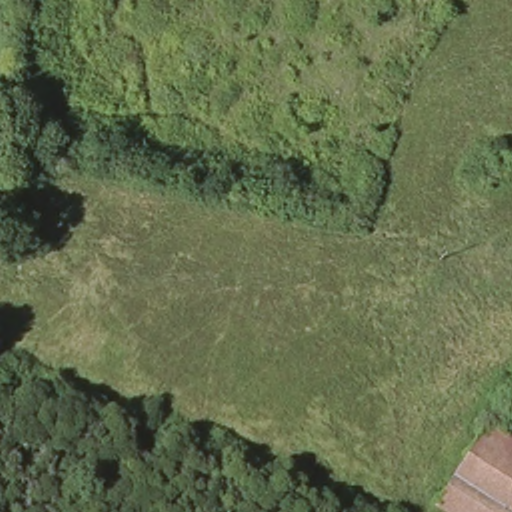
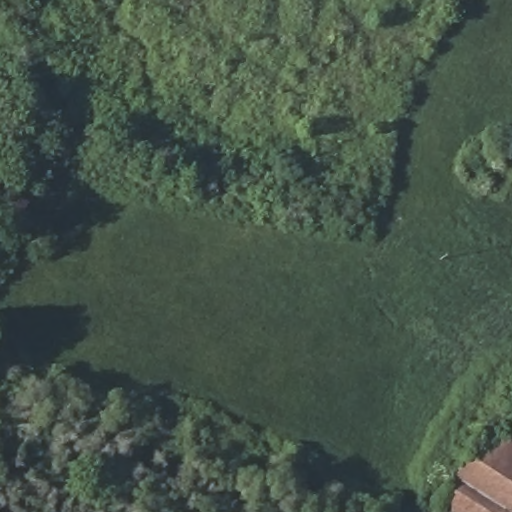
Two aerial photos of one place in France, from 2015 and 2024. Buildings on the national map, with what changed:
unchanged [(431,509),(479,436),(496,442),(510,420),(498,412),(512,393),(512,512),(437,512),(431,509)]

